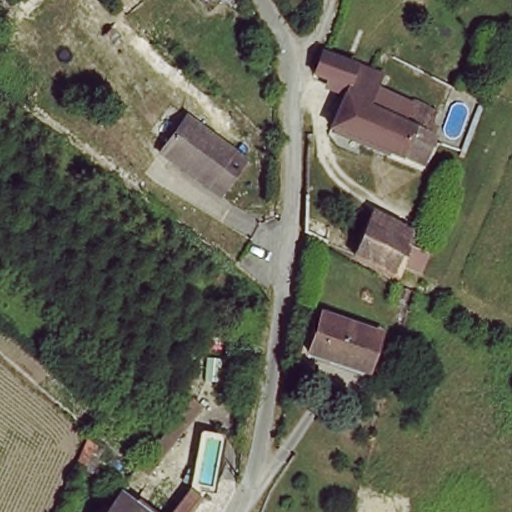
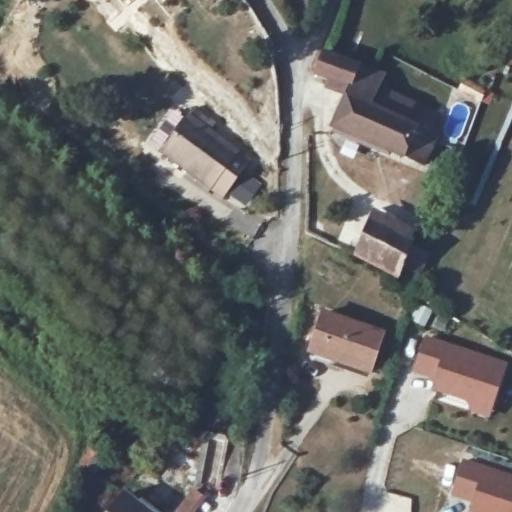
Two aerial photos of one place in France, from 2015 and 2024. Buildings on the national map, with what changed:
unchanged [(439,143),(427,172),(336,136),(352,96),(318,82),(327,61),(385,85),(380,96),(418,111),(447,124),(439,143)]
unchanged [(161,156),(187,119),(249,162),(224,200),(161,156)]
unchanged [(369,218),(414,236),(400,272),(354,254),(369,218)]
unchanged [(334,226),(330,245),(309,235),(309,220),(334,226)]
unchanged [(332,362),(309,355),(322,314),(382,333),(371,370),(333,358),(332,362)]
new [(434,378),(415,372),(425,338),(506,362),(486,417),(472,412),(467,400),(432,390),(434,378)]
new [(454,493),(464,460),(512,476),(512,512),(471,512),(475,501),(454,493)]
unchanged [(206,497),(195,512),(172,512),(193,487),(206,497)]
unchanged [(157,512),(115,512),(129,491),(157,512)]

